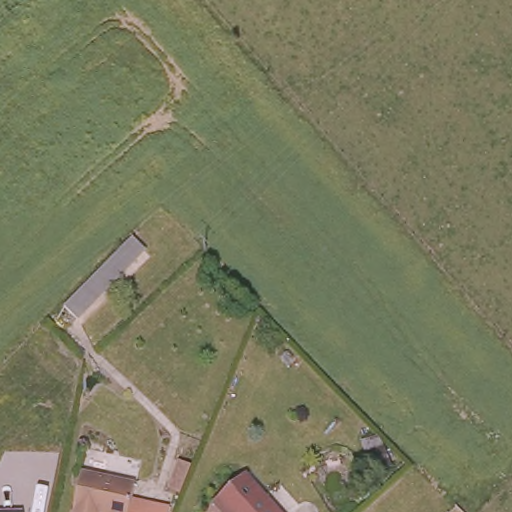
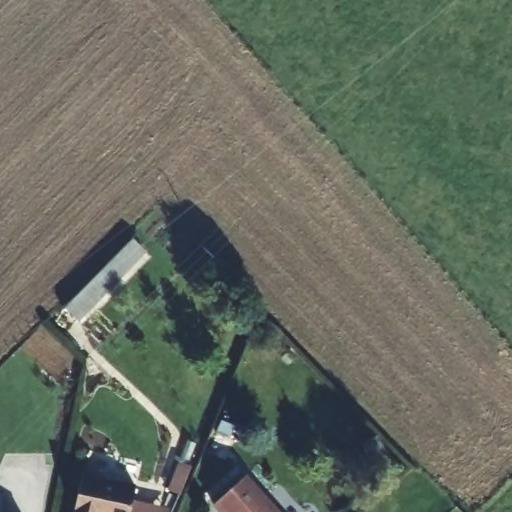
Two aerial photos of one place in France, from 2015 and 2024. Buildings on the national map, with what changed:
unchanged [(149,254),(79,324),(63,309),(133,239),(149,254)]
unchanged [(132,487),(127,512),(71,512),(78,478),(132,487)]
unchanged [(272,512),(214,512),(246,484),(272,512)]

